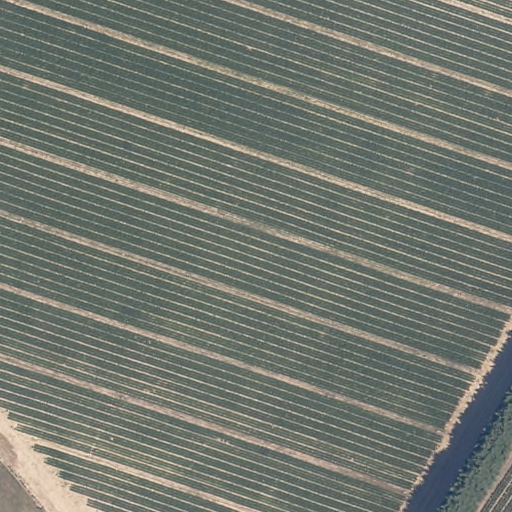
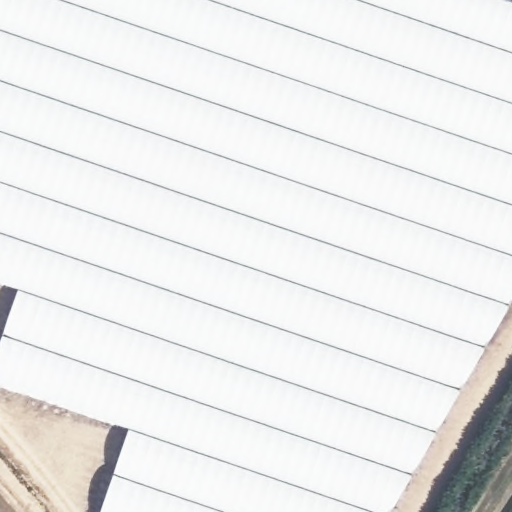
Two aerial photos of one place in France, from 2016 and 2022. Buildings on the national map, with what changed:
new [(128,429),(0,384),(0,345),(20,290),(0,283),(0,0),(511,0),(512,0),(512,305),(393,512),(100,512),(128,429)]

